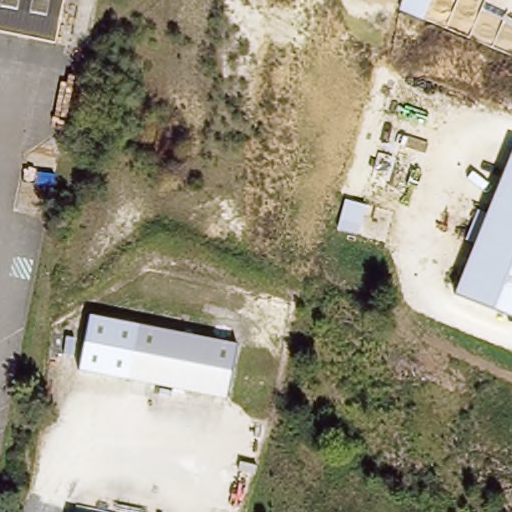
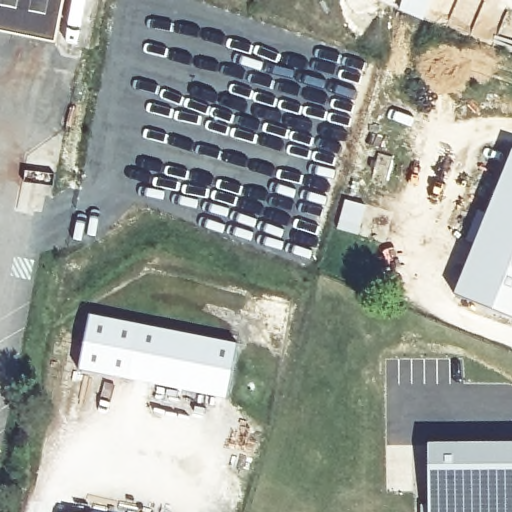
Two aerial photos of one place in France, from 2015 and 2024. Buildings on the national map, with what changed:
unchanged [(0,23),(0,0),(69,0),(61,36),(0,23)]
unchanged [(400,10),(403,0),(431,0),(423,20),(400,10)]
unchanged [(512,152),(512,317),(455,294),(512,152)]
unchanged [(81,370),(91,316),(141,325),(131,380),(81,370)]
unchanged [(237,363),(235,372),(231,397),(201,392),(131,380),(141,325),(169,330),(201,335),(240,342),(237,363)]
new [(512,445),(512,512),(431,512),(431,445),(512,445)]

